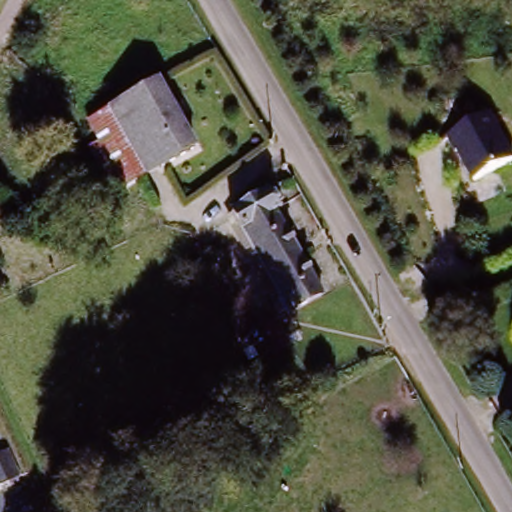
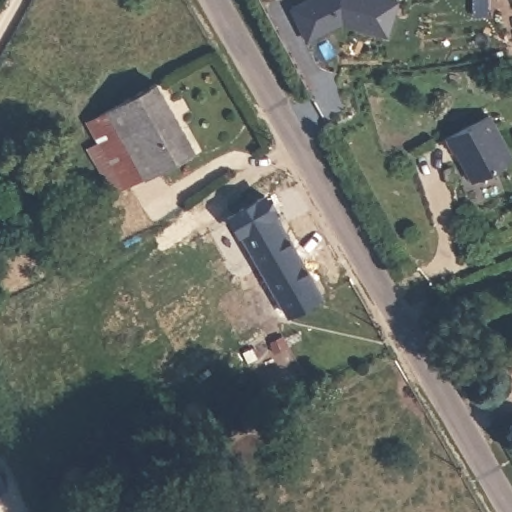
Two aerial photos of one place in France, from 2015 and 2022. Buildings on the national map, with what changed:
new [(315,0),(387,0),(403,5),(391,40),(347,25),(311,42),(295,10),(315,0)]
unchanged [(122,109),(161,86),(197,151),(157,174),(122,109)]
unchanged [(91,155),(103,150),(91,126),(122,109),(157,174),(125,191),(115,197),(91,155)]
unchanged [(473,177),(451,133),(492,112),(512,151),(512,158),(473,177)]
unchanged [(237,211),(279,190),(292,212),(282,218),(324,295),(291,312),(237,211)]

